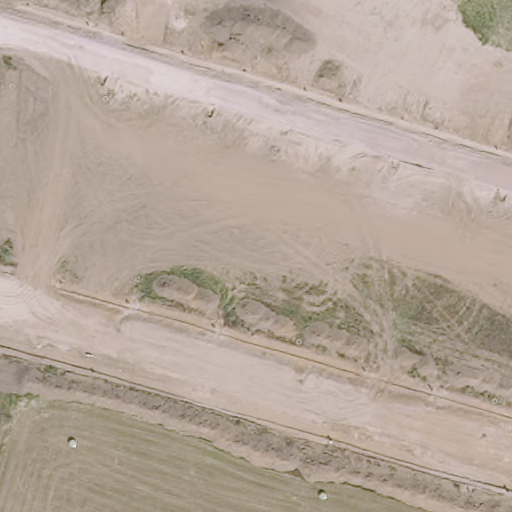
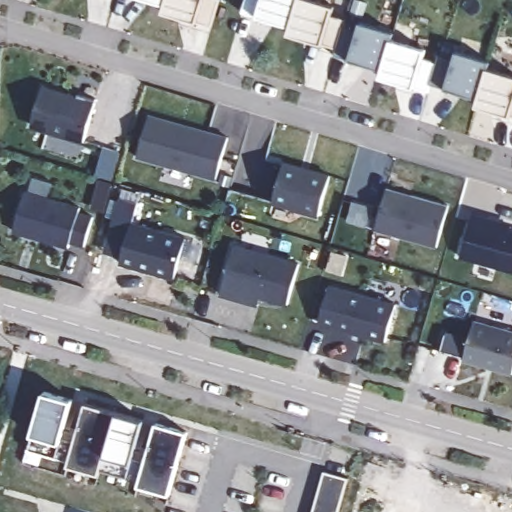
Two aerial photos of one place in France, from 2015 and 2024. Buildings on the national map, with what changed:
new [(165,0),(163,6),(144,0),(165,0)]
new [(161,12),(163,6),(165,0),(217,0),(209,28),(161,12)]
new [(244,0),(297,0),(289,26),(240,12),(244,0)]
new [(289,26),(297,0),(306,0),(332,7),(330,16),(342,20),(341,27),(335,49),(286,34),(289,26)]
new [(332,56),(335,49),(341,27),(355,31),(357,23),(391,32),(390,40),(380,70),(332,56)]
new [(427,91),(378,76),(380,70),(390,40),(423,50),(420,59),(434,63),(428,84),(427,91)]
new [(428,84),(434,63),(437,56),(451,60),(454,51),(487,61),(486,69),(477,99),(428,84)]
new [(475,105),(477,99),(486,69),(512,77),(512,117),(475,105)]
new [(30,126),(40,89),(75,98),(77,96),(95,101),(83,141),(30,126)]
new [(225,139),(214,180),(135,157),(147,117),(225,139)]
new [(93,176),(102,147),(118,152),(110,181),(93,176)]
new [(327,177),(317,215),(272,203),(282,165),(327,177)]
new [(373,230),(385,189),(447,206),(435,248),(373,230)]
new [(78,209),(77,214),(92,218),(83,246),(68,243),(67,249),(12,232),(23,193),(78,209)]
new [(120,264),(128,235),(110,231),(119,199),(137,204),(131,225),(184,240),(172,279),(120,264)]
new [(471,214),(500,222),(498,228),(512,232),(512,271),(460,255),(471,214)]
new [(297,264),(287,306),(237,292),(235,300),(220,295),(233,247),(297,264)]
new [(393,305),(384,342),(317,323),(327,287),(393,305)]
new [(462,360),(473,322),(512,333),(512,369),(510,374),(462,360)]
new [(43,393),(72,401),(62,437),(75,441),(85,405),(142,421),(132,458),(145,461),(155,424),(186,433),(168,495),(137,487),(138,483),(99,472),(97,475),(67,467),(69,463),(27,451),(43,393)]
new [(337,512),(312,512),(323,473),(347,479),(337,512)]

